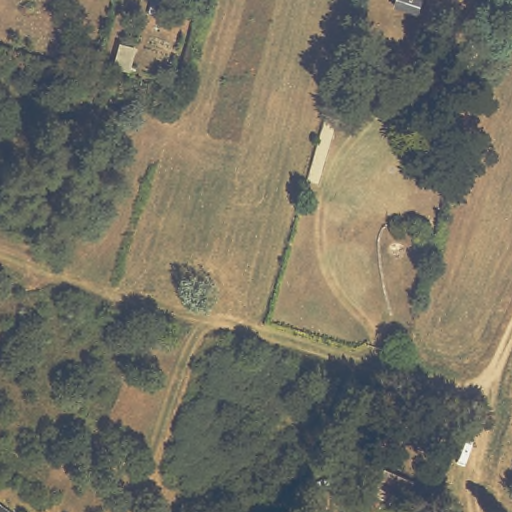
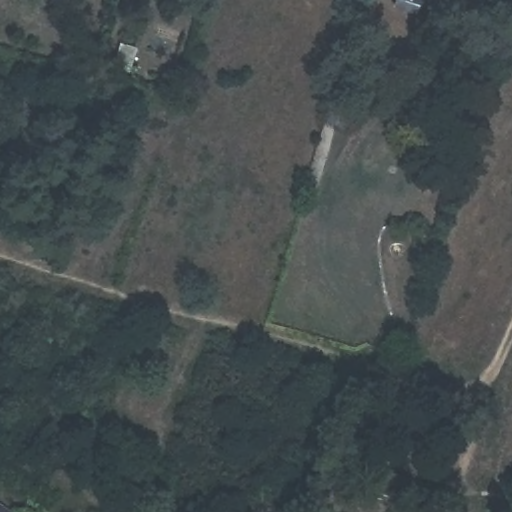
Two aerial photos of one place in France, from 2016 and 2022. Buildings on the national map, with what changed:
unchanged [(403,10),(406,0),(420,0),(430,3),(425,18),(403,10)]
unchanged [(425,510),(398,496),(407,479),(434,493),(425,510)]
unchanged [(1,501),(18,512),(0,512),(0,503),(1,501)]

